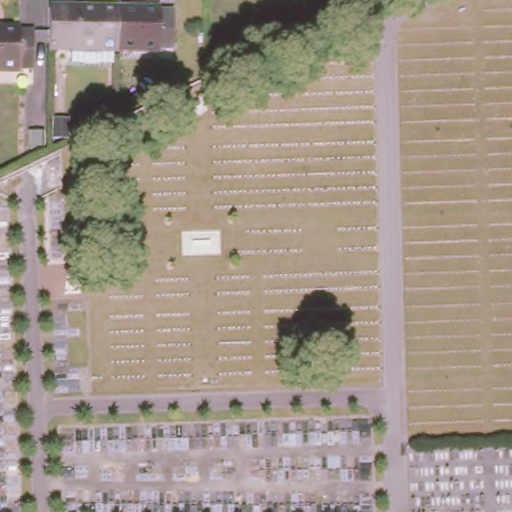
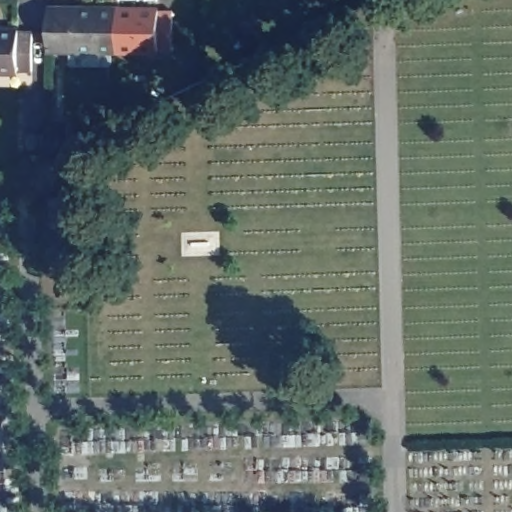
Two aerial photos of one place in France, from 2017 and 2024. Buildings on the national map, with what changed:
unchanged [(70,57),(70,42),(63,42),(48,42),(50,4),(64,5),(76,5),(119,5),(159,5),(174,5),(173,43),(158,43),(118,43),(118,58),(70,57)]
unchanged [(20,65),(0,65),(0,24),(20,25),(32,25),(32,65),(20,65)]

